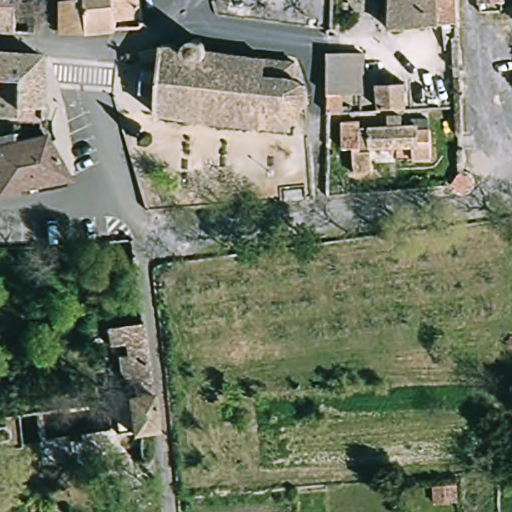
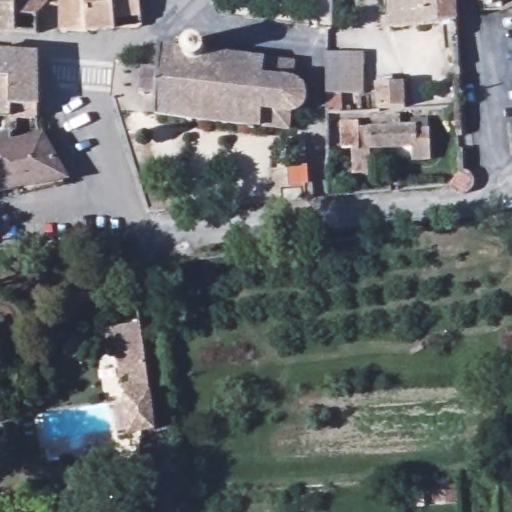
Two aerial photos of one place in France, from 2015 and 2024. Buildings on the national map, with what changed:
unchanged [(0,32),(0,0),(41,0),(46,10),(35,17),(33,34),(0,32)]
unchanged [(115,21),(116,32),(105,34),(59,35),(59,25),(57,24),(57,10),(84,0),(138,0),(139,18),(115,21)]
unchanged [(452,8),(454,54),(440,55),(439,30),(439,24),(384,30),(386,0),(452,0),(452,8)]
unchanged [(475,3),(475,0),(511,0),(511,3),(475,3)]
unchanged [(160,99),(139,97),(142,69),(161,70),(161,49),(185,52),(174,43),(178,37),(188,44),(200,40),(207,50),(252,56),(256,53),(261,54),(262,55),(294,60),(292,77),(299,82),(304,90),(306,94),(304,110),(288,116),(288,129),(158,117),(160,99)]
unchanged [(0,119),(0,54),(34,56),(32,106),(38,110),(41,114),(31,117),(22,119),(0,119)]
unchanged [(325,55),(359,54),(360,93),(327,94),(325,55)]
unchanged [(375,106),(374,72),(394,70),(395,77),(406,77),(407,105),(375,106)]
unchanged [(359,118),(359,124),(387,123),(387,113),(403,112),(403,123),(415,122),(415,126),(430,126),(429,160),(409,161),(408,143),(369,145),(368,170),(348,170),(349,146),(338,146),(339,119),(359,118)]
unchanged [(0,142),(14,138),(22,136),(43,132),(52,130),(55,135),(51,143),(67,174),(0,189),(0,142)]
unchanged [(109,379),(108,360),(118,359),(118,346),(106,348),(104,330),(144,323),(150,374),(121,377),(109,379)]
unchanged [(150,374),(153,397),(156,433),(126,437),(121,377),(150,374)]

